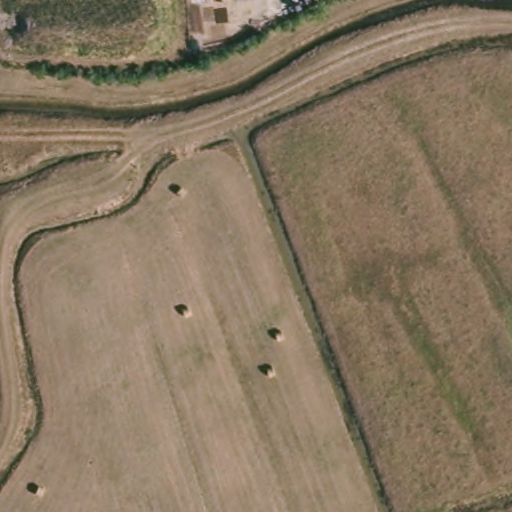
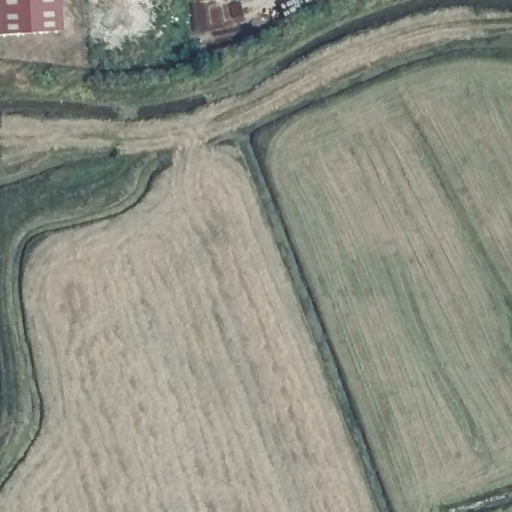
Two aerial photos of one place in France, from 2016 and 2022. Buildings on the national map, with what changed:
new [(0,32),(0,0),(60,0),(62,28),(0,32)]

